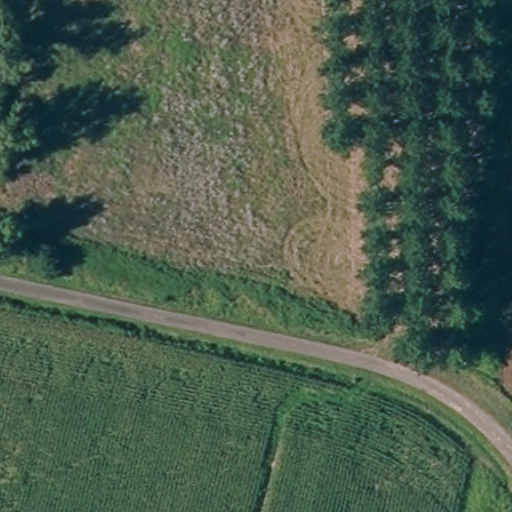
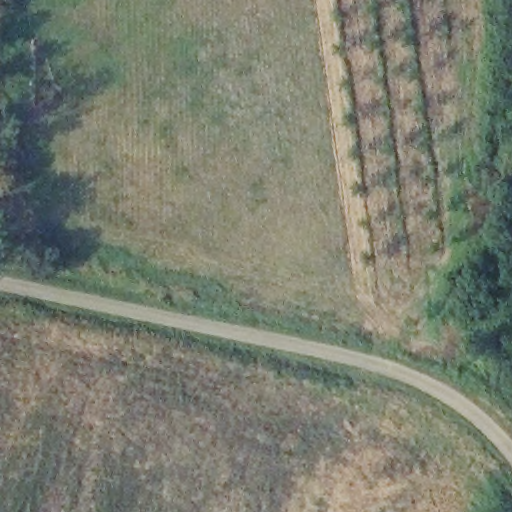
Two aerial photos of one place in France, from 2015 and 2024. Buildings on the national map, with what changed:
[]

